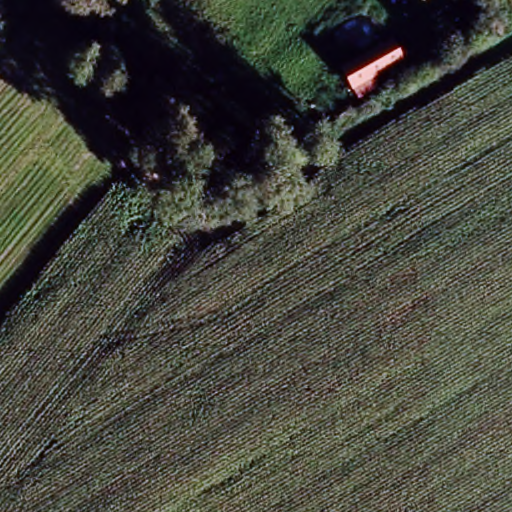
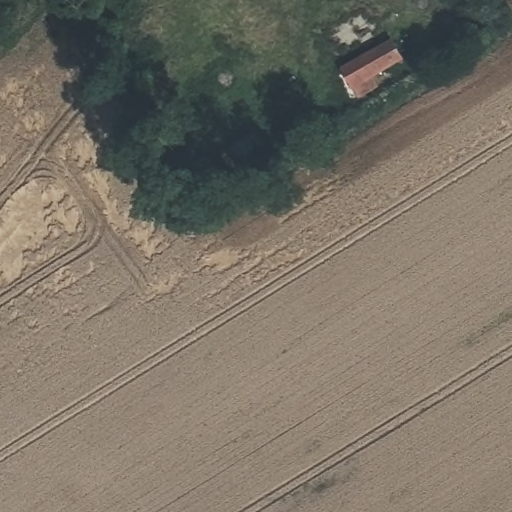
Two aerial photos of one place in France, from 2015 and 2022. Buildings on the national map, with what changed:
unchanged [(406,64),(347,96),(331,70),(392,35),(406,64)]

